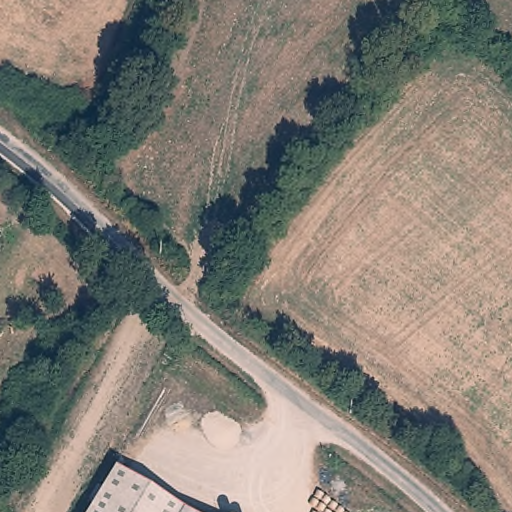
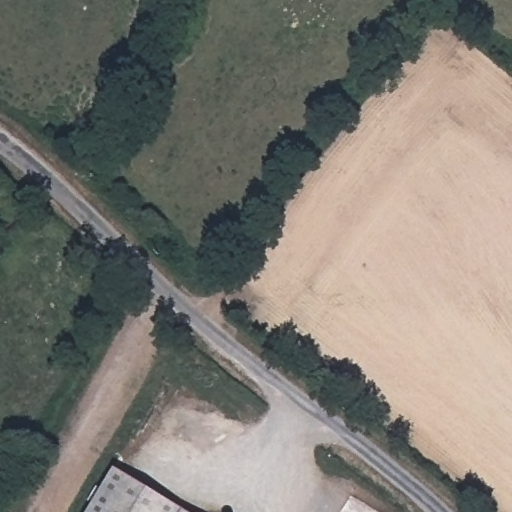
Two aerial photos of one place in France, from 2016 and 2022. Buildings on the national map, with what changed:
unchanged [(91,512),(117,470),(186,512),(91,512)]

